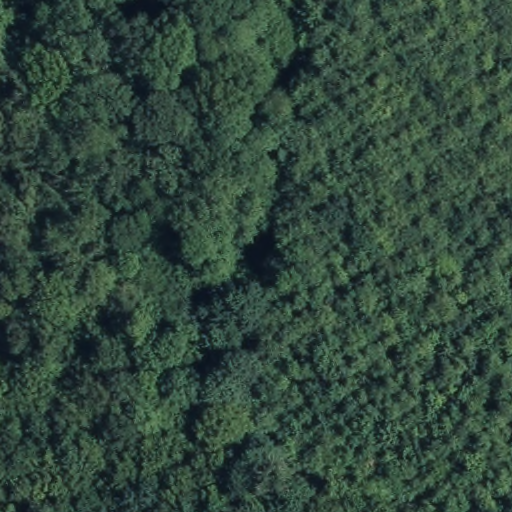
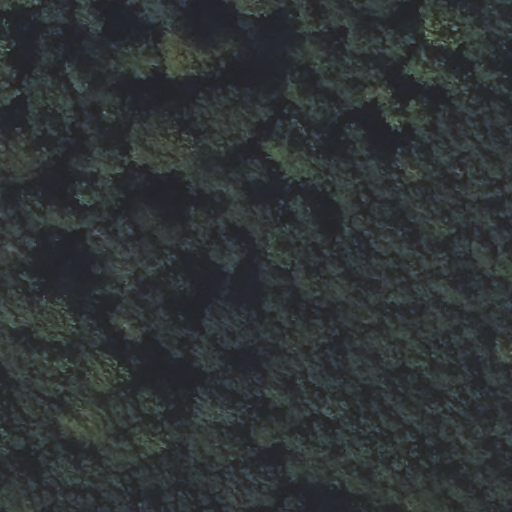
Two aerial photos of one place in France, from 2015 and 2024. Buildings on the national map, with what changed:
[]

